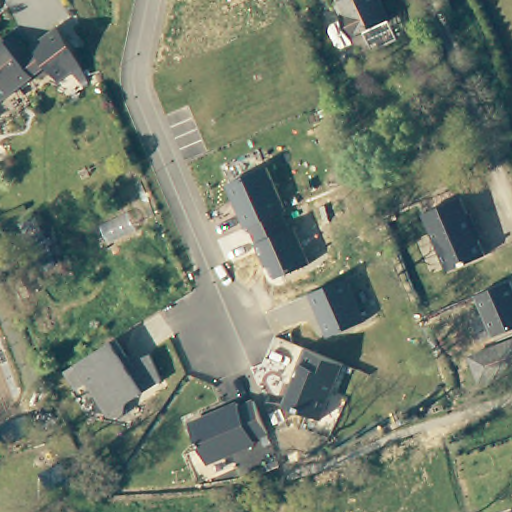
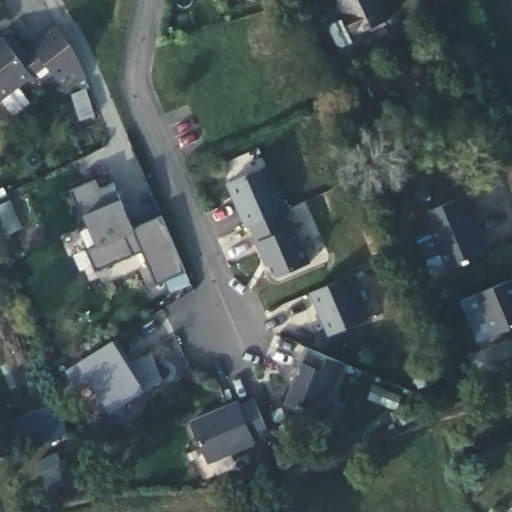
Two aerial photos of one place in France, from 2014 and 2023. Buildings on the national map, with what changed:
unchanged [(396,23),(357,40),(346,17),(352,15),(345,0),(385,0),(396,23)]
unchanged [(51,62),(37,46),(59,28),(87,75),(79,79),(73,72),(59,82),(45,67),(51,62)]
unchanged [(29,53),(37,46),(51,62),(3,101),(0,98),(0,40),(4,36),(12,35),(29,53)]
unchanged [(271,265),(265,267),(226,186),(264,167),(310,262),(277,278),(271,265)]
new [(187,271),(157,285),(143,251),(98,272),(88,251),(99,246),(84,215),(73,190),(96,180),(99,189),(113,183),(121,199),(136,230),(162,215),(187,271)]
unchanged [(423,212),(459,195),(485,254),(448,270),(423,212)]
unchanged [(310,296),(344,280),(363,321),(329,337),(310,296)]
unchanged [(511,281),(512,283),(512,329),(493,337),(477,296),(511,281)]
unchanged [(106,411),(90,383),(79,390),(65,371),(114,340),(128,361),(153,352),(163,379),(142,387),(144,391),(129,401),(124,416),(106,411)]
unchanged [(476,355),(512,341),(512,370),(486,380),(476,355)]
unchanged [(285,402),(305,348),(344,363),(319,418),(285,402)]
unchanged [(189,420),(239,399),(242,405),(256,400),(271,432),(254,440),(257,444),(209,465),(189,420)]

